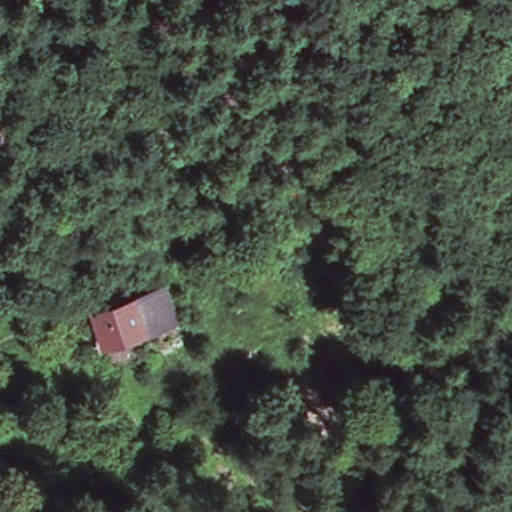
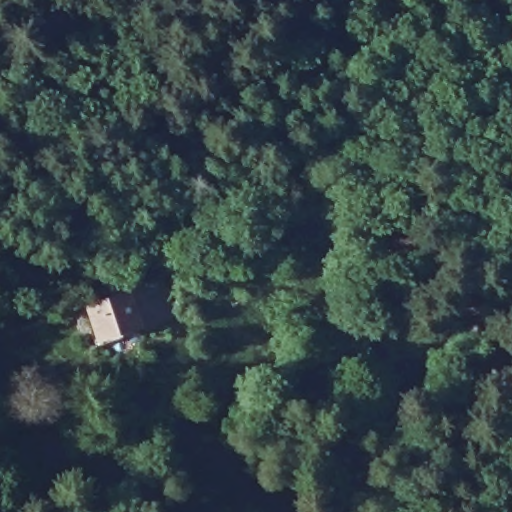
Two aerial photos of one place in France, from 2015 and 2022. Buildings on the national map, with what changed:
unchanged [(86,310),(162,285),(179,321),(99,348),(86,310)]

